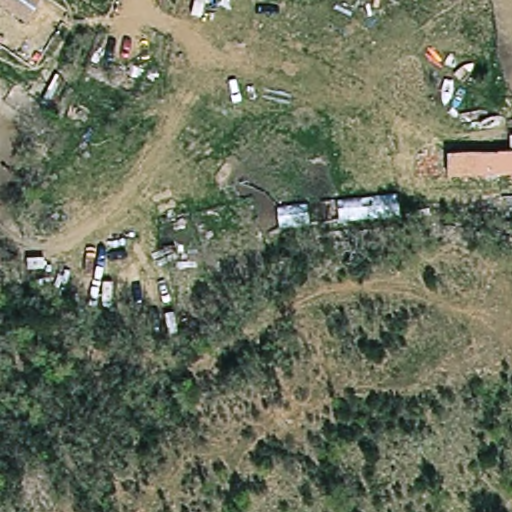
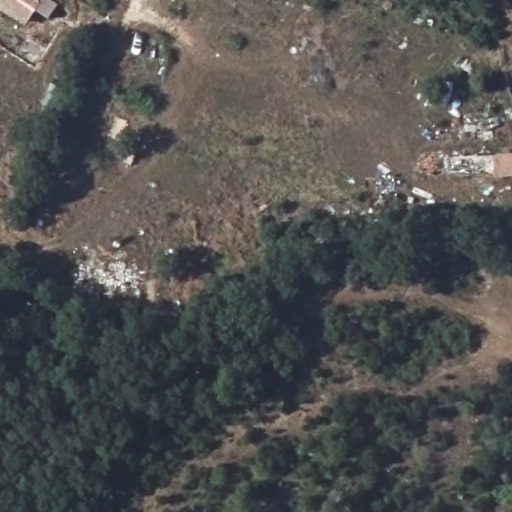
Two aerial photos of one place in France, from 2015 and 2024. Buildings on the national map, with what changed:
unchanged [(0,8),(0,0),(45,0),(29,26),(0,8)]
unchanged [(448,159),(512,155),(512,174),(449,177),(448,159)]

